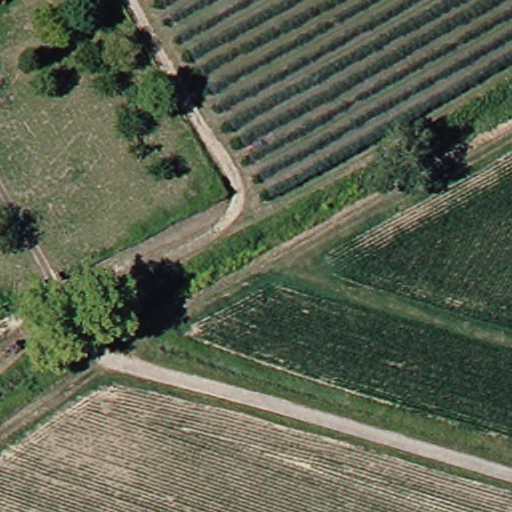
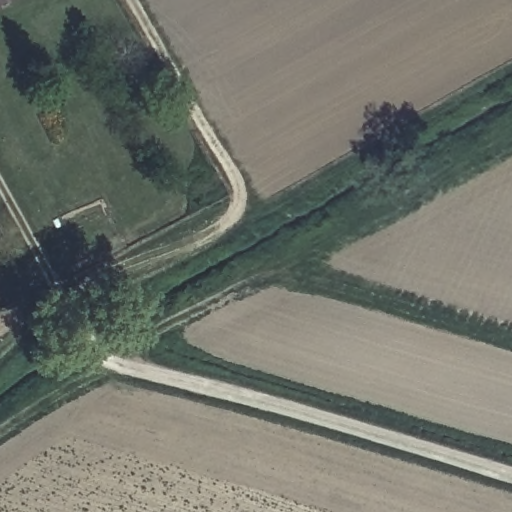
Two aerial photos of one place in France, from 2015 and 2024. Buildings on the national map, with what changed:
unchanged [(0,0),(3,0),(0,1),(0,0)]

